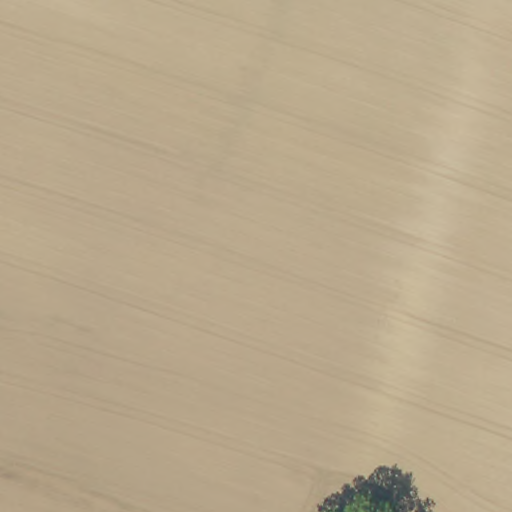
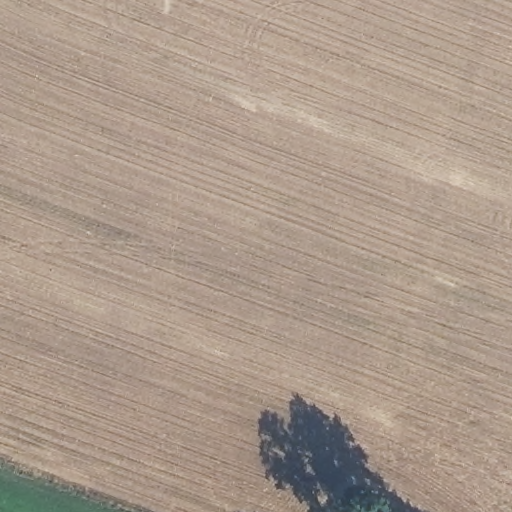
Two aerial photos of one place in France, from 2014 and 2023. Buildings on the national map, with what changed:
[]

